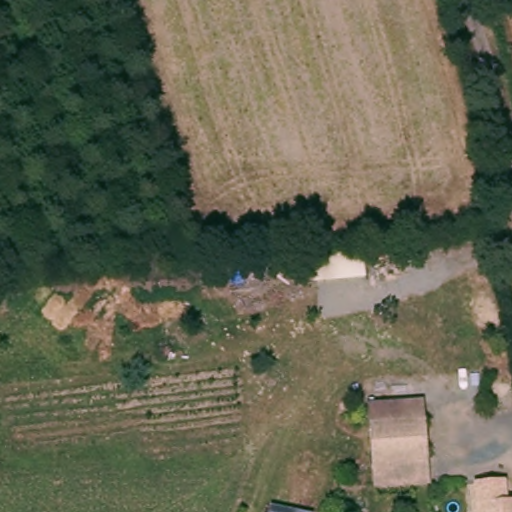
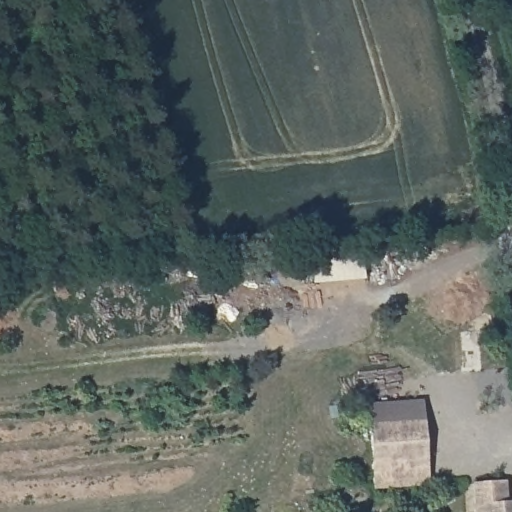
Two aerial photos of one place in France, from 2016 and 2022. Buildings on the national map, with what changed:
unchanged [(377,454),(374,415),(372,400),(427,395),(428,410),(431,450),(377,454)]
unchanged [(509,474),(510,495),(512,495),(512,512),(481,512),(478,477),(509,474)]

